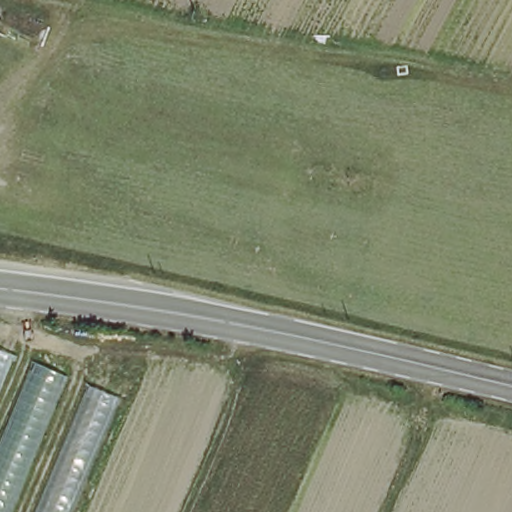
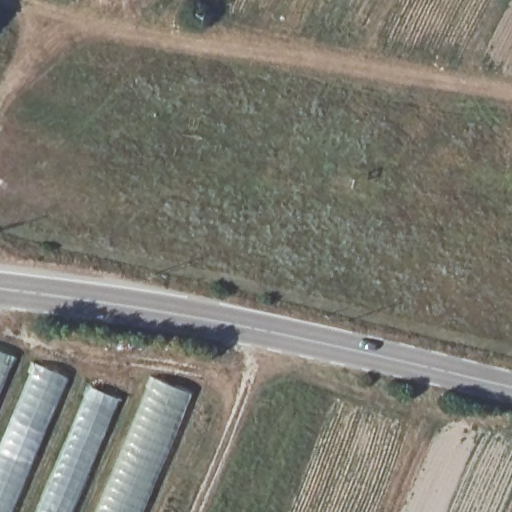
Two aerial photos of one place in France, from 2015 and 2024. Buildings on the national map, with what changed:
unchanged [(72,512),(0,512),(0,349),(120,399),(72,512)]
new [(194,394),(145,512),(94,512),(150,377),(194,394)]

